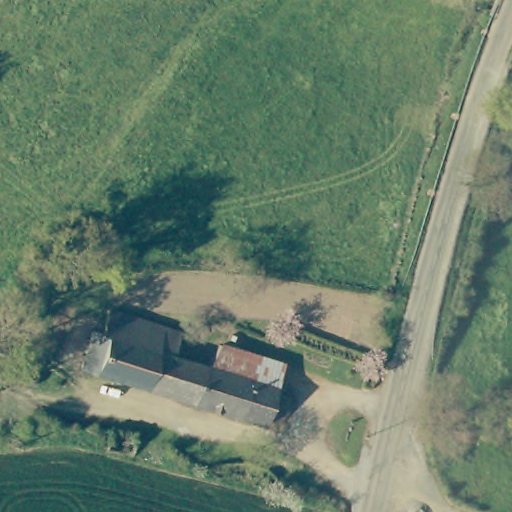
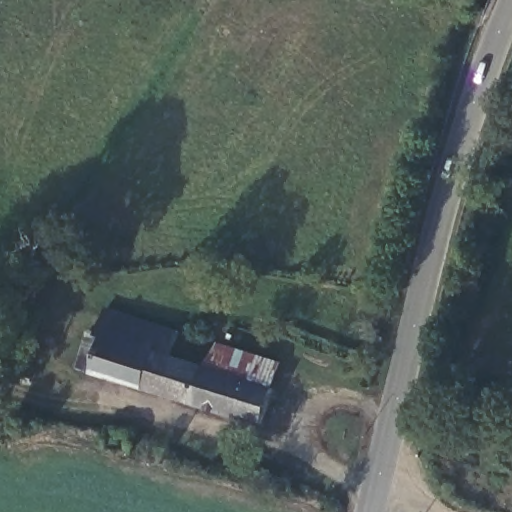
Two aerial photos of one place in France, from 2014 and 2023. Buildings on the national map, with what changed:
unchanged [(76,368),(89,331),(97,335),(107,309),(160,326),(140,389),(76,368)]
unchanged [(140,389),(160,326),(165,328),(176,331),(169,356),(194,363),(205,367),(192,406),(140,389)]
unchanged [(261,357),(279,364),(271,389),(205,367),(214,342),(261,357)]
unchanged [(205,367),(271,389),(259,427),(192,406),(205,367)]
unchanged [(31,388),(21,383),(26,375),(37,374),(31,388)]
unchanged [(108,431),(132,433),(132,453),(106,453),(107,448),(108,431)]

